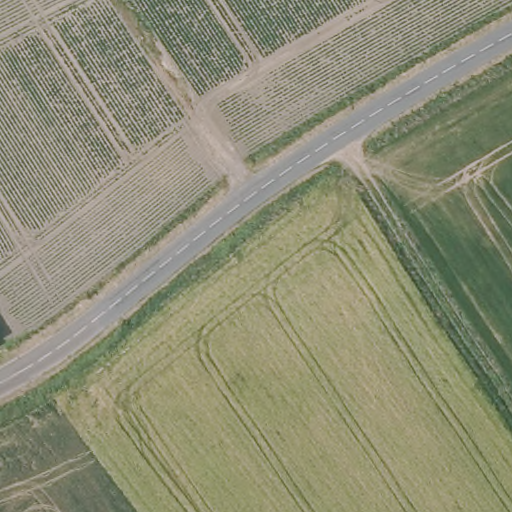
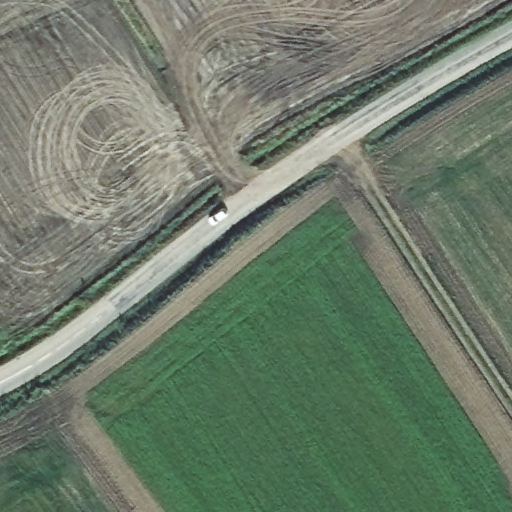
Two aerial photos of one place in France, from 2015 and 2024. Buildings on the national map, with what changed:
[]

